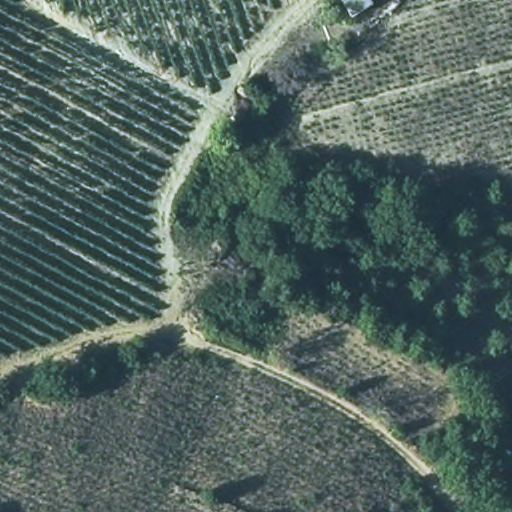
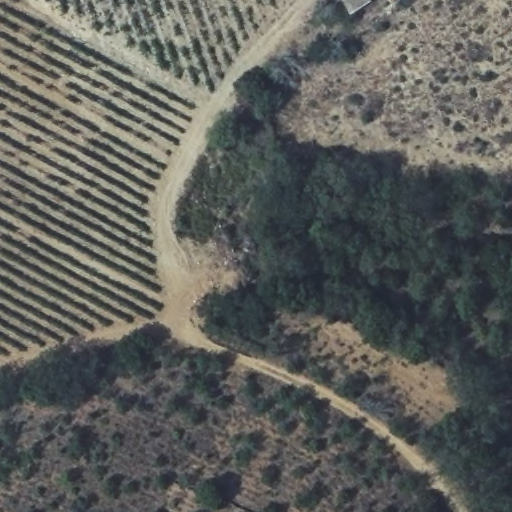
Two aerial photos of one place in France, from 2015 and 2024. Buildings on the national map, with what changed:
unchanged [(375,5),(351,14),(342,0),(372,0),(375,5)]

